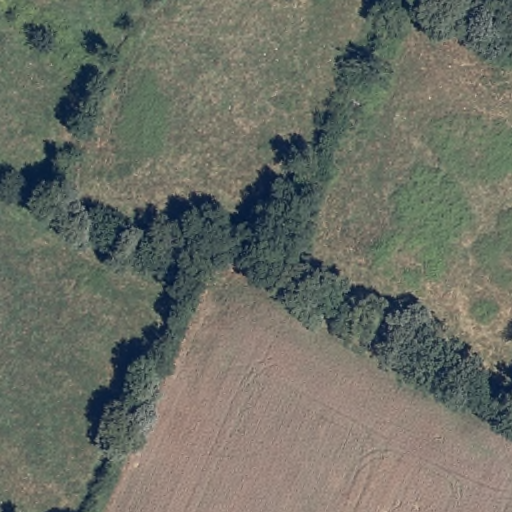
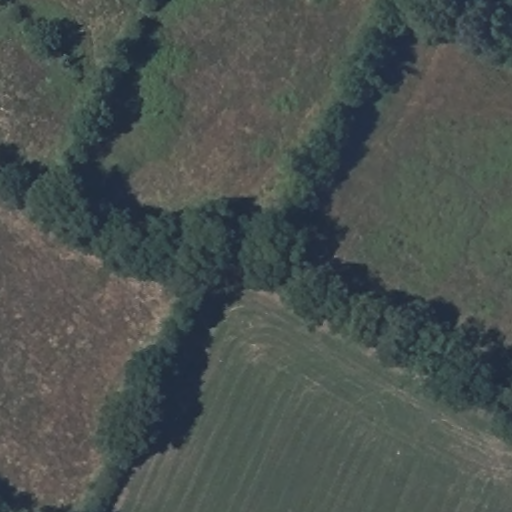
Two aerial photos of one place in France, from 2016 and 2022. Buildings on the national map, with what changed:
[]

